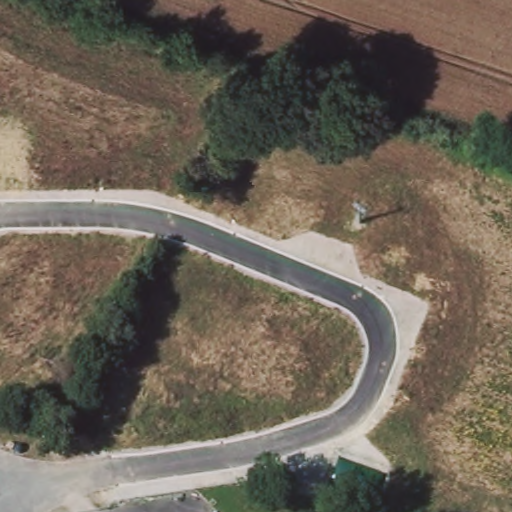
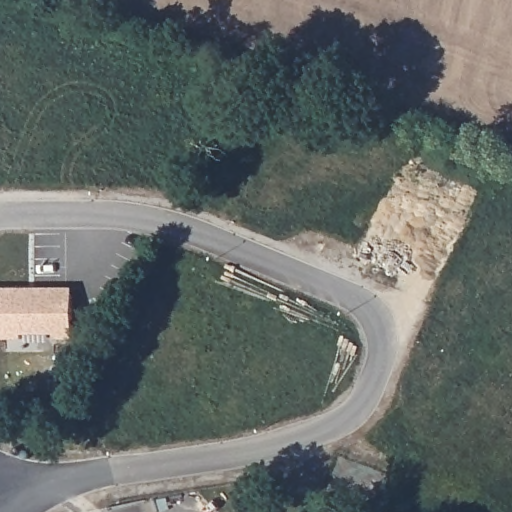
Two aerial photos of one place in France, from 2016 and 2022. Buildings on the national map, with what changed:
new [(74,285),(74,339),(55,339),(55,333),(22,333),(22,339),(0,339),(0,286),(74,285)]

